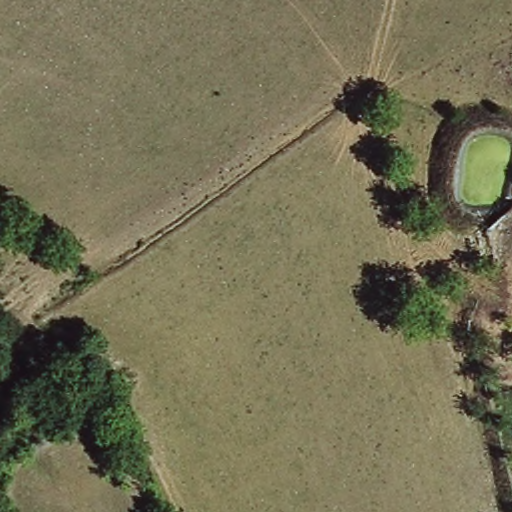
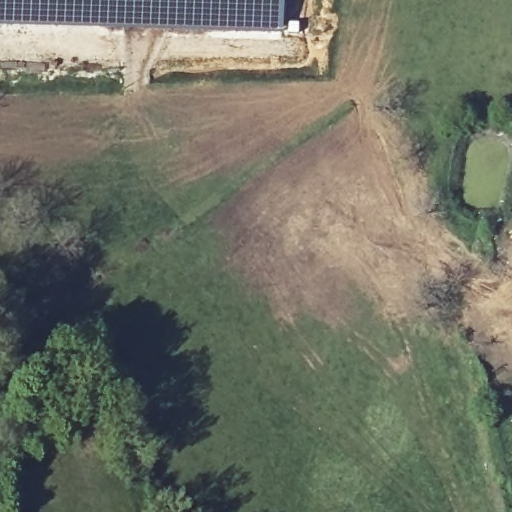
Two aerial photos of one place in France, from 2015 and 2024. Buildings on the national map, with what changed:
new [(285,0),(285,32),(232,33),(149,31),(0,30),(0,0),(285,0)]

